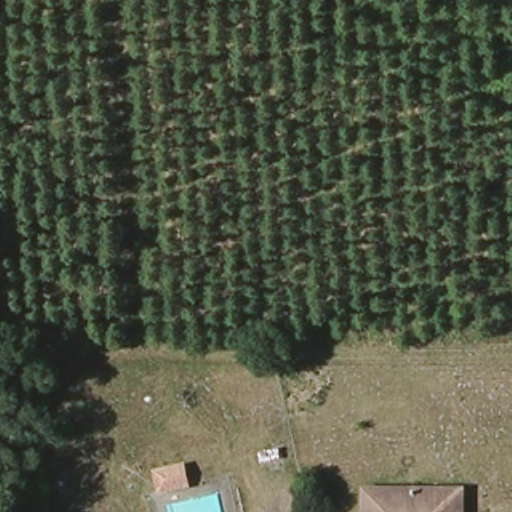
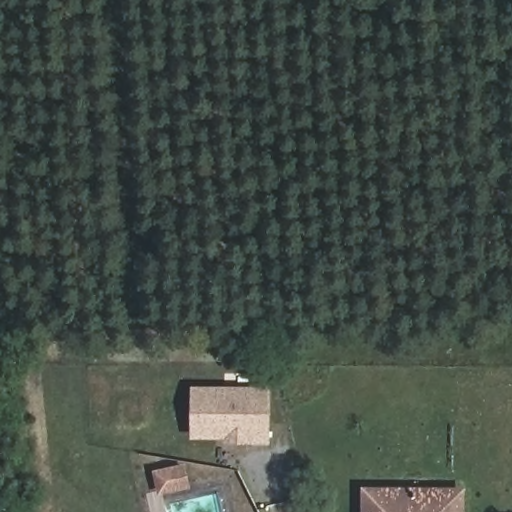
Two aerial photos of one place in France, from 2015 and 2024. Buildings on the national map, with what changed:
new [(224,444),(223,440),(191,440),(190,387),(271,386),(271,444),(224,444)]
new [(184,467),(187,486),(170,489),(160,492),(156,473),(166,471),(184,467)]
unchanged [(363,494),(458,491),(459,512),(364,512),(363,494)]

